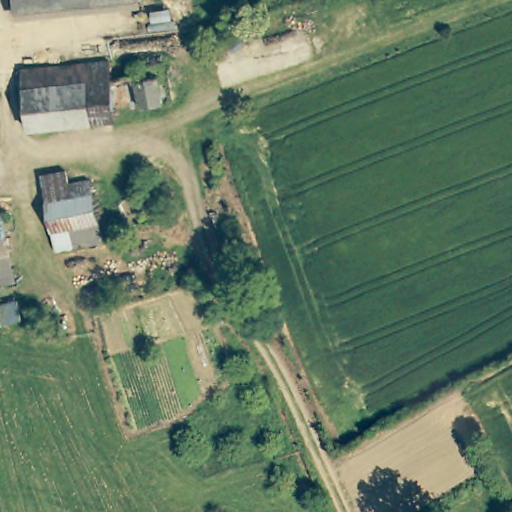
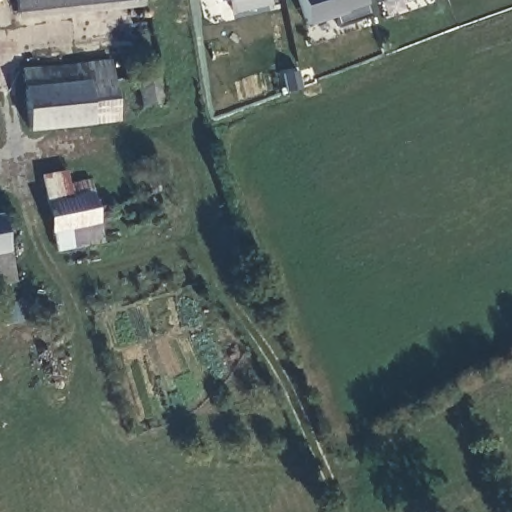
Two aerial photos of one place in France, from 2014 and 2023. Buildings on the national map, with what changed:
unchanged [(16,18),(14,0),(140,0),(141,5),(16,18)]
new [(234,13),(231,0),(268,0),(270,5),(234,13)]
new [(333,14),(306,23),(300,0),(365,0),(367,5),(370,14),(338,26),(333,14)]
new [(383,0),(394,0),(385,4),(383,0)]
new [(404,0),(412,0),(405,3),(404,0)]
unchanged [(115,119),(27,129),(22,69),(109,60),(110,79),(114,111),(115,119)]
unchanged [(164,101),(141,106),(136,81),(158,76),(164,101)]
unchanged [(102,240),(57,250),(45,188),(42,174),(65,170),(68,184),(90,180),(102,240)]
unchanged [(157,178),(160,191),(149,193),(146,179),(157,178)]
unchanged [(7,250),(13,278),(0,280),(0,216),(7,250)]
unchanged [(18,300),(22,319),(0,325),(0,304),(18,300)]

